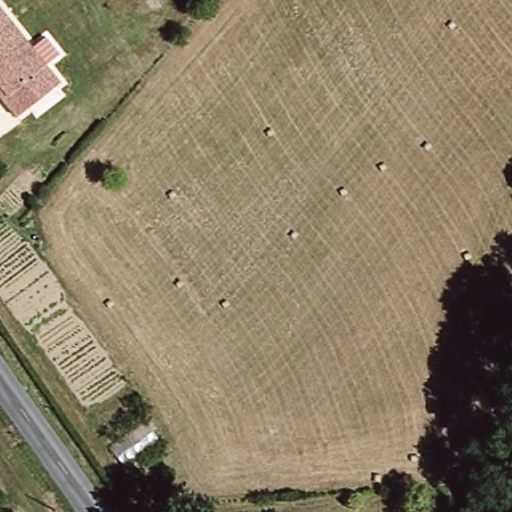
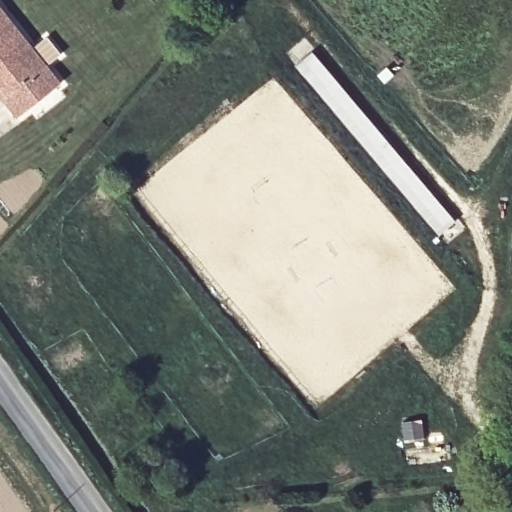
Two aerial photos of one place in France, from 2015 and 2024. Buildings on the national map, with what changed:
unchanged [(45,65),(60,85),(15,119),(0,99),(0,6),(35,51),(45,65)]
new [(455,222),(438,236),(295,65),(311,51),(455,222)]

